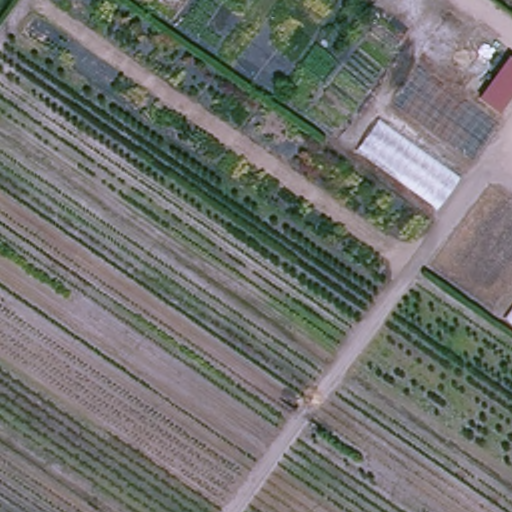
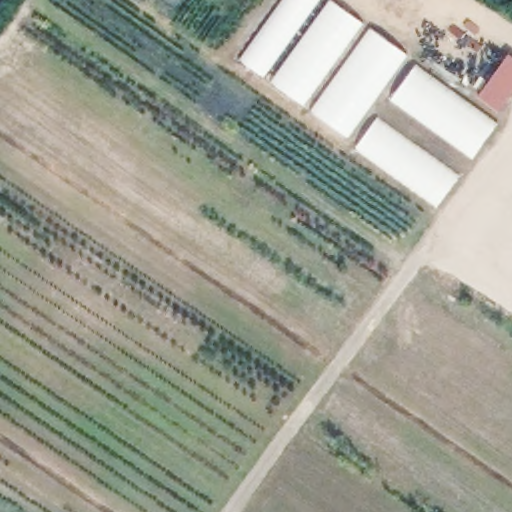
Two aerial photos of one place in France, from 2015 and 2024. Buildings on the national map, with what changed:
new [(281,0),(318,0),(263,77),(239,60),(281,0)]
new [(328,0),(332,0),(363,22),(302,106),(270,82),(328,0)]
new [(347,137),(310,111),(370,28),(407,55),(347,137)]
unchanged [(510,52),(512,54),(512,94),(501,109),(481,94),(510,52)]
new [(392,101),(416,65),(500,123),(475,159),(392,101)]
unchanged [(456,176),(432,210),(353,150),(375,119),(456,176)]

